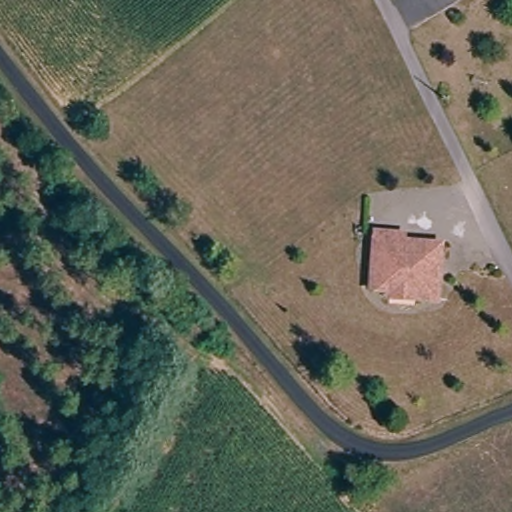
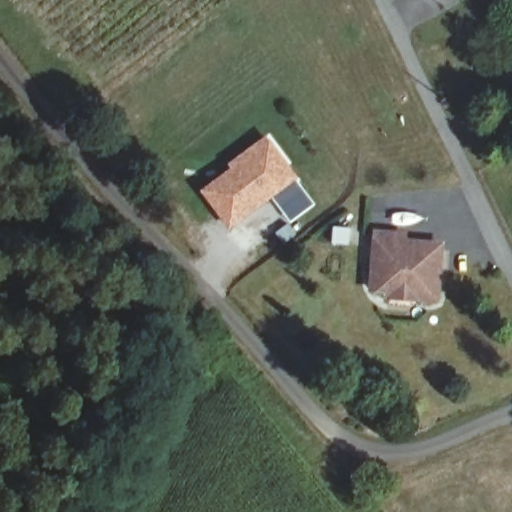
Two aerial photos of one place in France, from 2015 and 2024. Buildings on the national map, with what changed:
new [(230,232),(200,192),(233,167),(230,164),(268,135),(300,179),(298,180),(316,205),(291,223),(273,197),(230,232)]
unchanged [(380,296),(363,295),(367,242),(386,243),(391,243),(391,249),(432,253),(427,308),(404,307),(379,305),(380,296)]

